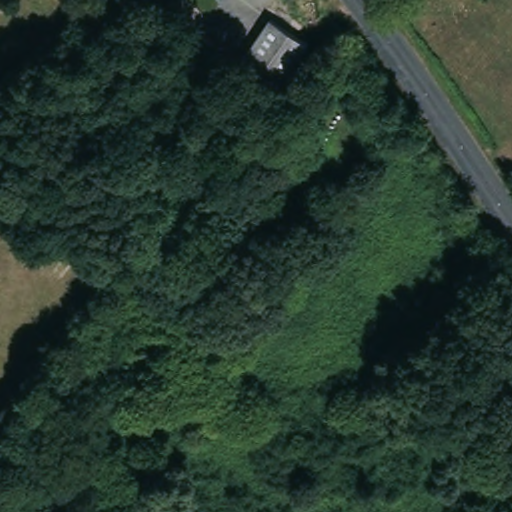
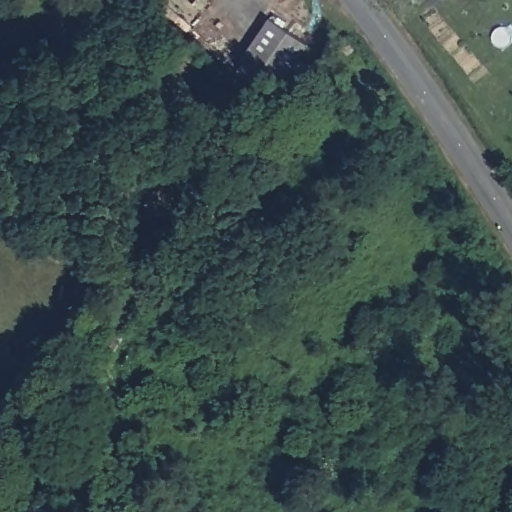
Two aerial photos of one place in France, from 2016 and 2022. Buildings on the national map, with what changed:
unchanged [(265,24),(304,50),(275,91),(237,65),(265,24)]

